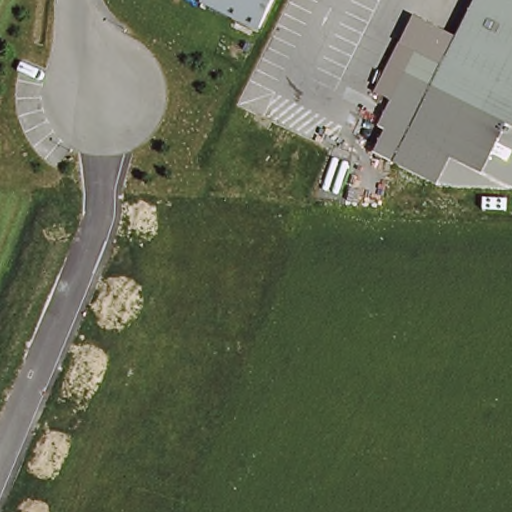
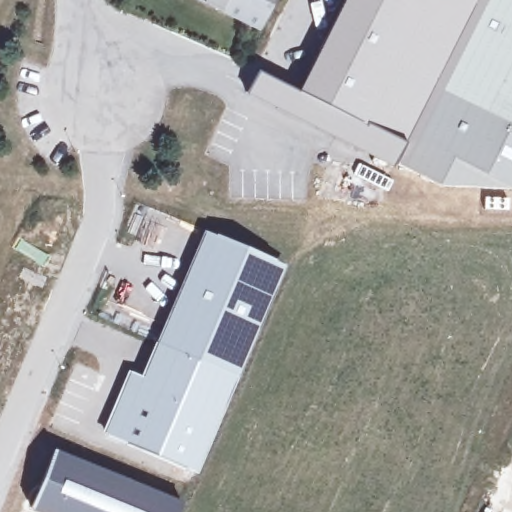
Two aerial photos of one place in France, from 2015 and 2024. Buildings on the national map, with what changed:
unchanged [(265,34),(194,0),(282,0),(265,34)]
new [(430,89),(390,169),(247,95),(260,70),(297,91),(343,0),(475,0),(443,62),(430,89)]
unchanged [(512,191),(432,189),(390,169),(430,89),(443,62),(475,0),(512,0),(512,191)]
new [(205,231),(287,265),(239,377),(157,342),(205,231)]
new [(239,377),(198,473),(105,435),(130,375),(142,380),(157,342),(239,377)]
new [(179,505),(176,512),(31,512),(28,511),(51,453),(179,505)]

